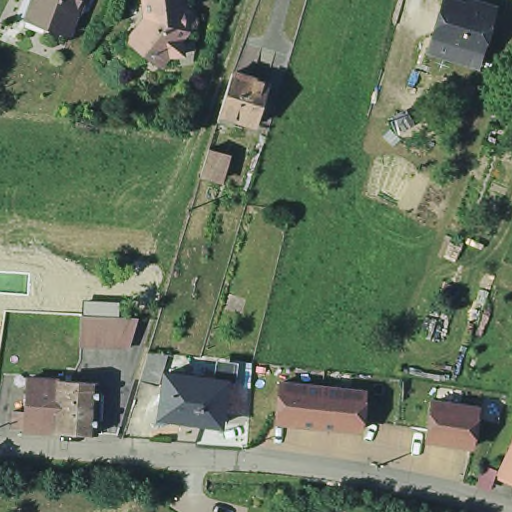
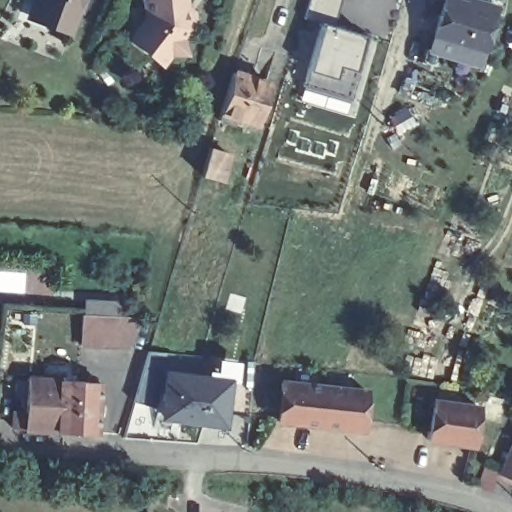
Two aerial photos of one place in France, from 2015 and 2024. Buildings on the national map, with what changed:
unchanged [(83,3),(80,3),(78,10),(81,12),(73,31),(51,24),(50,28),(22,18),(28,0),(87,0),(83,3)]
unchanged [(187,15),(195,21),(196,30),(182,46),(183,56),(171,58),(164,67),(134,42),(148,24),(146,0),(185,0),(187,15)]
new [(307,62),(320,24),(302,18),(308,0),(340,0),(333,21),(330,20),(329,23),(370,36),(345,113),(312,97),(311,101),(297,97),(299,91),(307,62)]
unchanged [(457,46),(435,40),(447,0),(488,0),(497,3),(485,42),(482,54),(457,46)]
unchanged [(274,85),(260,126),(224,114),(237,73),(274,85)]
new [(408,105),(418,125),(399,135),(388,115),(408,105)]
unchanged [(226,153),(218,181),(200,175),(208,148),(226,153)]
unchanged [(83,315),(138,318),(129,348),(81,346),(83,315)]
unchanged [(175,358),(168,390),(150,385),(158,356),(175,358)]
unchanged [(236,386),(230,428),(190,423),(191,416),(172,414),(177,378),(236,386)]
unchanged [(18,411),(31,412),(33,379),(106,383),(102,434),(30,429),(17,428),(18,411)]
unchanged [(311,385),(365,390),(361,429),(308,424),(276,421),(280,381),(311,385)]
unchanged [(433,400),(478,407),(473,445),(427,439),(433,400)]
unchanged [(512,445),(512,479),(499,473),(512,445)]
unchanged [(225,495),(224,501),(216,501),(217,494),(225,495)]

